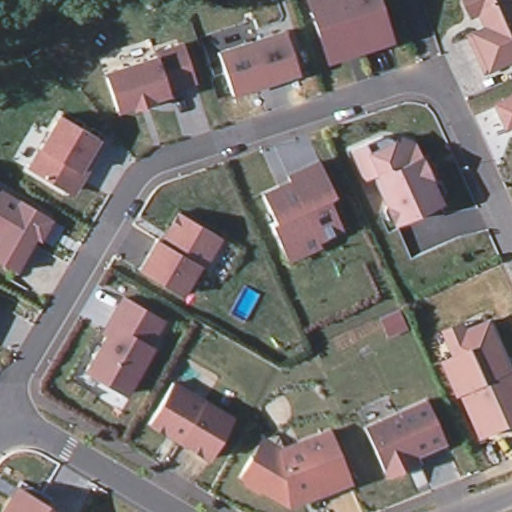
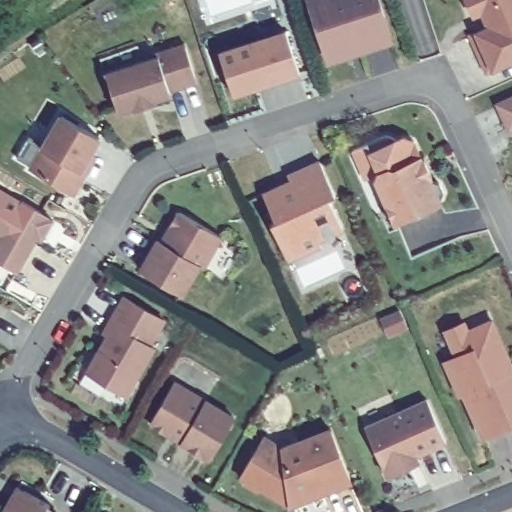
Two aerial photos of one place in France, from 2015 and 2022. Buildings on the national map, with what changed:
unchanged [(323,47),(312,16),(310,9),(313,8),(310,0),(376,0),(388,36),(343,51),(337,52),(326,57),(323,47)]
unchanged [(470,35),(488,27),(481,11),(478,12),(471,10),(466,0),(512,0),(512,60),(486,72),(470,35)]
unchanged [(219,53),(220,52),(272,36),(285,31),(286,34),(299,72),(294,74),(241,92),(232,95),(219,53)]
unchanged [(115,71),(156,57),(154,53),(160,51),(182,44),(184,48),(195,82),(179,87),(168,92),(169,95),(154,100),(154,102),(135,109),(133,110),(132,107),(117,112),(104,74),(115,71)]
unchanged [(499,105),(512,99),(512,129),(508,131),(499,105)]
unchanged [(95,157),(99,159),(74,196),(29,170),(61,115),(103,141),(95,157)]
unchanged [(381,142),(396,148),(404,145),(414,148),(422,167),(424,166),(432,184),(430,185),(431,187),(439,190),(442,197),(439,206),(440,207),(412,220),(395,227),(394,226),(387,223),(383,215),(386,207),(376,185),(379,177),(365,183),(353,155),(366,149),(376,145),(381,142)]
unchanged [(283,259),(276,243),(267,222),(271,221),(259,193),(284,182),(286,186),(297,181),(293,171),(325,157),(340,191),(334,194),(345,219),(310,235),(315,245),(283,259)]
unchanged [(52,219),(49,224),(42,237),(38,234),(16,271),(0,262),(0,189),(19,201),(20,199),(41,211),(40,212),(45,215),(52,219)]
unchanged [(150,253),(158,240),(166,245),(170,236),(169,230),(178,212),(196,222),(220,237),(211,253),(202,267),(199,266),(182,295),(165,285),(140,270),(150,253)]
unchanged [(149,346),(153,348),(153,349),(142,367),(126,395),(86,371),(93,361),(101,347),(108,336),(103,333),(109,323),(124,297),(163,321),(149,346)]
unchanged [(464,397),(457,399),(442,363),(454,358),(445,333),(464,324),(468,331),(493,321),(512,362),(512,429),(483,443),(464,397)]
unchanged [(181,442),(184,438),(172,432),(169,435),(157,428),(150,424),(154,416),(174,383),(197,397),(234,418),(213,453),(210,459),(181,442)]
unchanged [(403,410),(426,400),(446,442),(417,455),(406,460),(409,467),(387,477),(365,427),(403,410)]
unchanged [(250,454),(265,453),(276,458),(282,447),(300,439),(330,427),(351,478),(316,492),(290,502),(239,473),(250,454)]
unchanged [(12,498),(18,487),(23,490),(50,506),(46,512),(3,512),(9,502),(12,498)]

